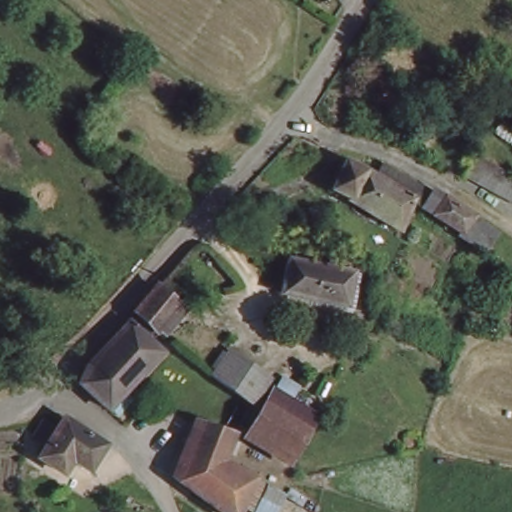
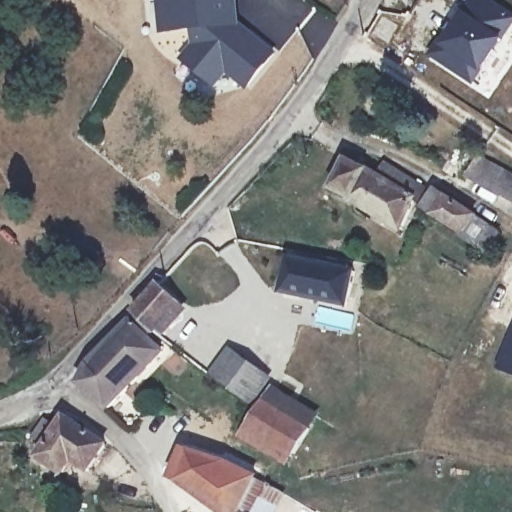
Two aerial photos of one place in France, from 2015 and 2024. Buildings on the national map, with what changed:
new [(276,51),(246,90),(226,75),(212,87),(182,62),(190,47),(190,31),(158,34),(155,0),(238,0),(240,22),(276,51)]
new [(512,22),(504,35),(461,8),(463,5),(458,2),(455,0),(491,0),(512,13),(512,22)]
new [(459,12),(454,10),(458,2),(463,5),(461,8),(504,35),(471,85),(428,59),(459,12)]
unchanged [(364,183),(368,166),(408,176),(397,224),(323,206),(331,175),(364,183)]
unchanged [(508,196),(471,189),(476,167),(512,175),(512,203),(507,201),(508,196)]
unchanged [(486,258),(459,239),(463,233),(421,210),(432,184),(472,206),(470,212),(500,233),(486,258)]
unchanged [(310,298),(279,290),(279,284),(285,256),(317,263),(310,298)]
unchanged [(350,271),(343,306),(310,298),(317,263),(350,271)]
unchanged [(135,310),(148,293),(155,285),(179,303),(173,310),(160,328),(135,310)]
new [(497,357),(512,318),(512,375),(496,370),(500,358),(497,357)]
unchanged [(155,352),(104,405),(77,381),(90,357),(125,323),(155,352)]
unchanged [(205,375),(221,351),(257,377),(261,380),(245,402),(205,375)]
unchanged [(309,422),(290,460),(243,433),(260,398),(309,422)]
unchanged [(231,435),(224,445),(252,464),(225,504),(168,461),(201,413),(231,435)]
unchanged [(58,436),(62,425),(107,439),(99,467),(82,462),(77,478),(47,469),(52,453),(40,450),(46,433),(58,436)]

